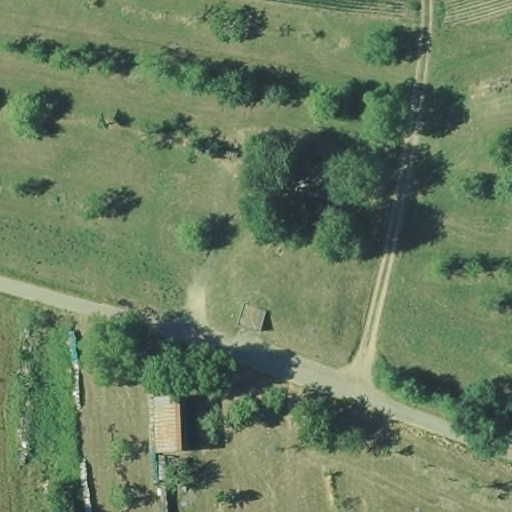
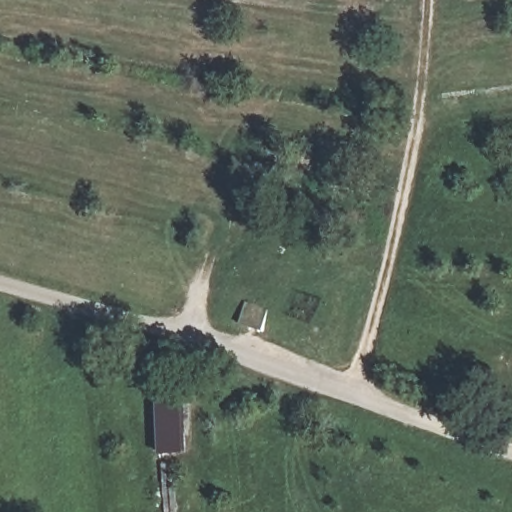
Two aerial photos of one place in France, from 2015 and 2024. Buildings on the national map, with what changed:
unchanged [(192,459),(157,458),(156,402),(188,405),(192,459)]

